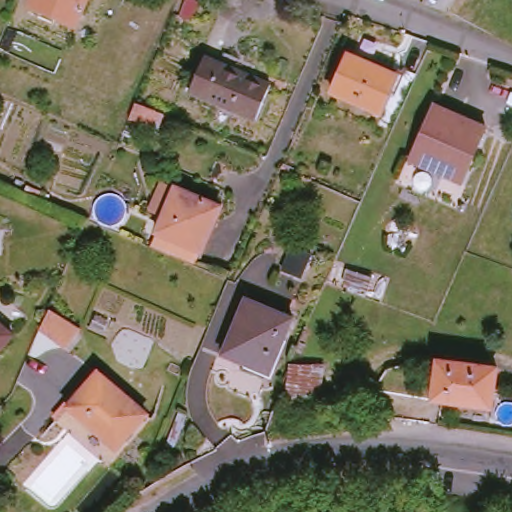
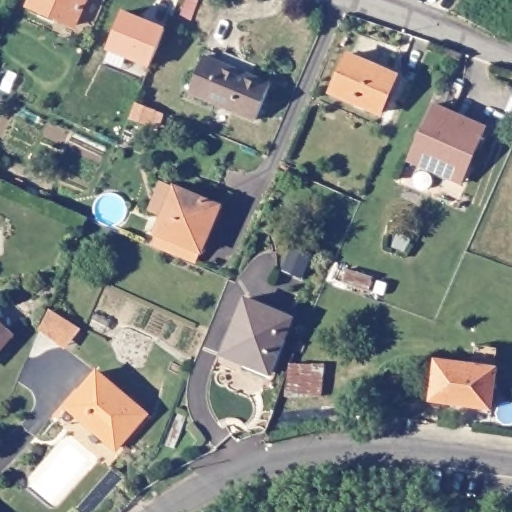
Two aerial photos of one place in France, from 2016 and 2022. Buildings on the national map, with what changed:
unchanged [(33,8),(37,0),(91,0),(79,29),(33,8)]
new [(108,50),(123,10),(167,27),(150,68),(108,50)]
unchanged [(335,95),(355,50),(405,71),(385,117),(335,95)]
unchanged [(260,120),(193,94),(207,58),(275,85),(260,120)]
unchanged [(445,171),(416,158),(437,110),(440,100),(456,107),(490,121),(472,162),(465,179),(445,171)]
unchanged [(163,239),(173,214),(160,208),(171,180),(230,205),(208,257),(163,239)]
unchanged [(315,247),(307,271),(289,265),(297,241),(315,247)]
unchanged [(349,283),(353,270),(379,279),(374,293),(349,283)]
unchanged [(230,355),(250,297),(297,312),(277,371),(230,355)]
unchanged [(18,335),(0,356),(0,319),(18,335)]
unchanged [(504,373),(498,411),(439,404),(444,365),(504,373)]
unchanged [(330,408),(291,407),(293,367),(333,370),(330,408)]
unchanged [(73,406),(105,370),(152,412),(121,448),(73,406)]

